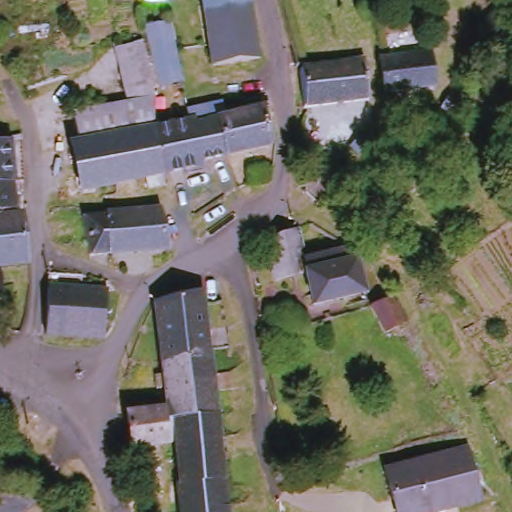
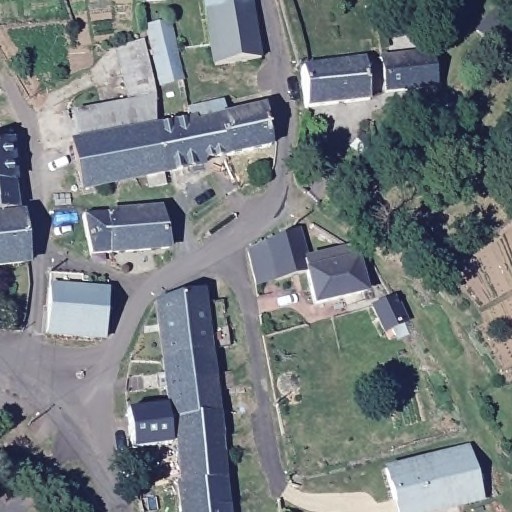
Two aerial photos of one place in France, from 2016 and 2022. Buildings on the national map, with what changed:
unchanged [(258,32),(262,61),(215,68),(205,0),(252,0),(258,32)]
unchanged [(487,35),(478,27),(503,0),(512,0),(512,32),(500,45),(487,35)]
unchanged [(367,7),(375,5),(380,5),(381,14),(376,15),(370,16),(367,7)]
unchanged [(165,83),(159,56),(151,24),(175,19),(183,51),(190,78),(165,83)]
unchanged [(166,161),(170,174),(171,178),(172,185),(154,188),(152,177),(87,190),(76,142),(84,140),(76,112),(133,98),(113,48),(143,40),(148,58),(156,84),(158,105),(160,124),(166,161)]
unchanged [(361,45),(373,43),(376,64),(367,66),(372,102),(307,112),(303,73),(363,62),(361,45)]
unchanged [(383,57),(432,50),(437,83),(388,90),(383,57)]
unchanged [(455,90),(469,99),(460,114),(446,104),(455,90)]
unchanged [(195,117),(193,106),(227,99),(230,115),(269,107),(277,146),(208,160),(210,166),(170,174),(166,161),(160,124),(195,117)]
unchanged [(355,146),(370,137),(376,148),(360,157),(355,146)]
unchanged [(19,164),(20,180),(0,183),(0,140),(16,138),(19,164)]
unchanged [(253,169),(268,166),(271,180),(256,183),(253,169)]
unchanged [(0,212),(0,183),(20,180),(23,208),(0,212)]
unchanged [(29,211),(34,262),(0,266),(0,215),(23,212),(29,211)]
unchanged [(94,246),(88,218),(113,218),(165,215),(175,253),(116,258),(97,259),(94,246)]
unchanged [(270,240),(302,227),(314,268),(360,256),(368,288),(376,286),(379,296),(370,299),(367,289),(317,302),(310,270),(280,278),(270,240)]
unchanged [(55,290),(57,290),(59,277),(71,279),(71,291),(90,293),(112,295),(115,296),(112,328),(111,343),(52,338),(55,290)]
unchanged [(206,285),(213,346),(163,353),(156,293),(206,285)]
unchanged [(405,323),(406,324),(406,326),(406,329),(405,331),(403,334),(401,336),(400,336),(397,336),(395,335),(394,334),(391,330),(387,331),(375,305),(395,295),(410,321),(405,323)]
unchanged [(163,353),(213,346),(216,371),(231,369),(233,385),(217,387),(220,409),(170,415),(170,408),(167,392),(163,353)]
unchanged [(227,475),(182,481),(177,439),(135,445),(128,404),(166,397),(167,408),(170,408),(170,415),(220,409),(227,475)]
unchanged [(423,512),(401,512),(390,469),(470,448),(481,493),(422,509),(423,512)]
unchanged [(178,481),(182,481),(227,475),(232,512),(182,512),(178,487),(178,481)]

